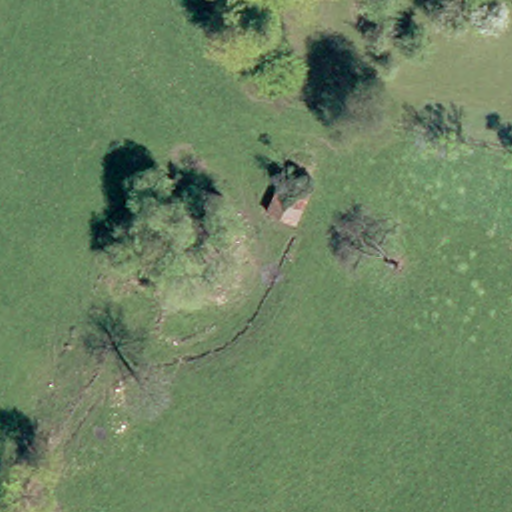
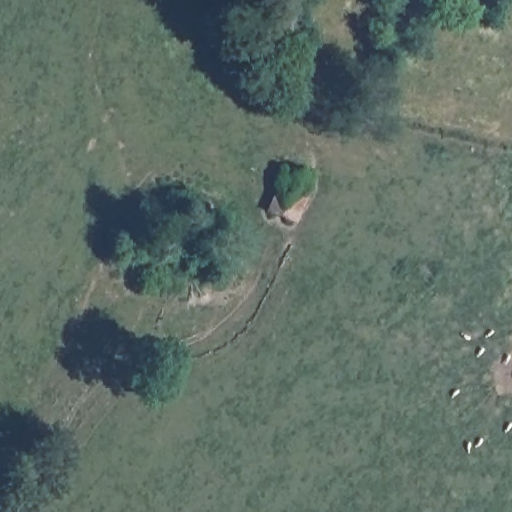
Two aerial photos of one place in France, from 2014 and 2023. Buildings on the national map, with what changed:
unchanged [(310,183),(295,224),(268,214),(285,173),(310,183)]

